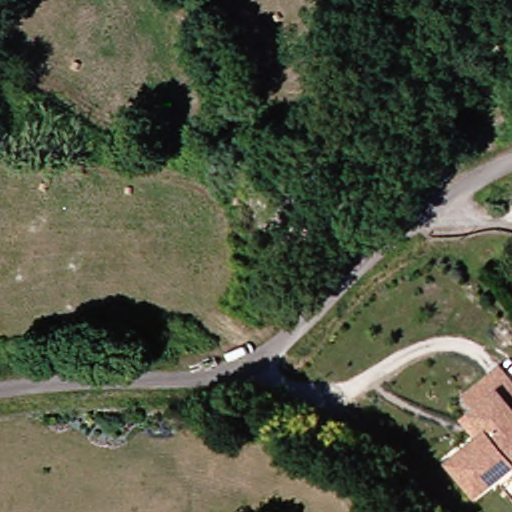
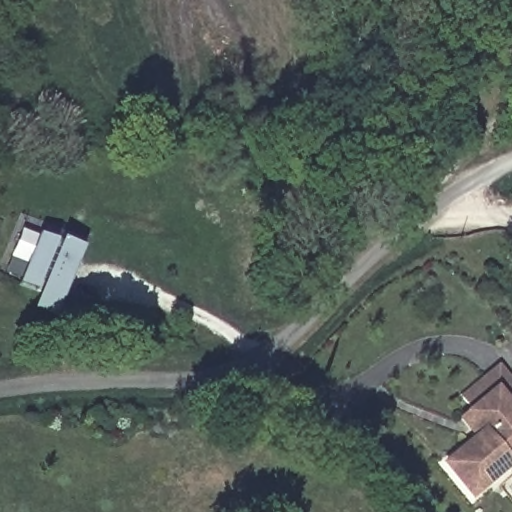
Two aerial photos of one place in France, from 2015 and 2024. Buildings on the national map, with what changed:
new [(60,322),(34,314),(41,293),(20,286),(29,263),(13,258),(23,231),(39,237),(59,244),(60,241),(86,250),(60,322)]
unchanged [(510,464),(470,495),(444,459),(483,430),(469,410),(472,407),(462,394),(500,366),(512,381),(512,463),(510,464)]

